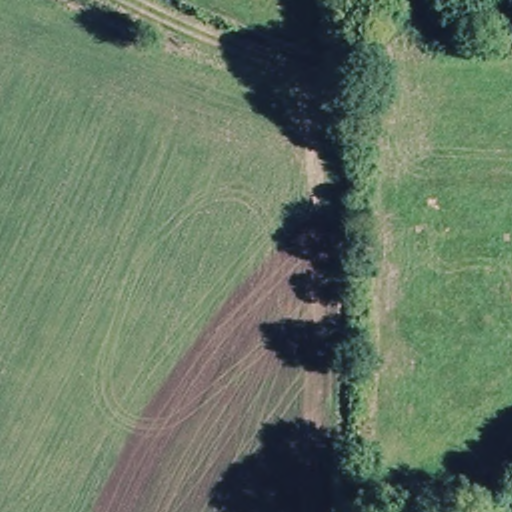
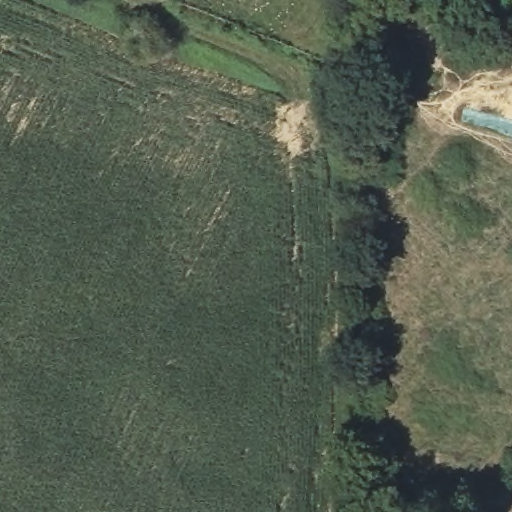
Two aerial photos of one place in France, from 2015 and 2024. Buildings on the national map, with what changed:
[]

